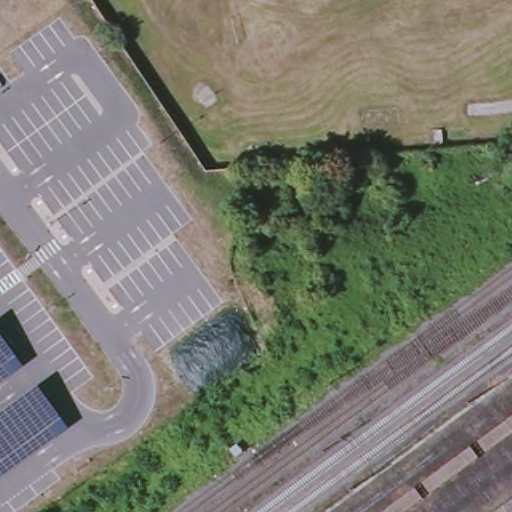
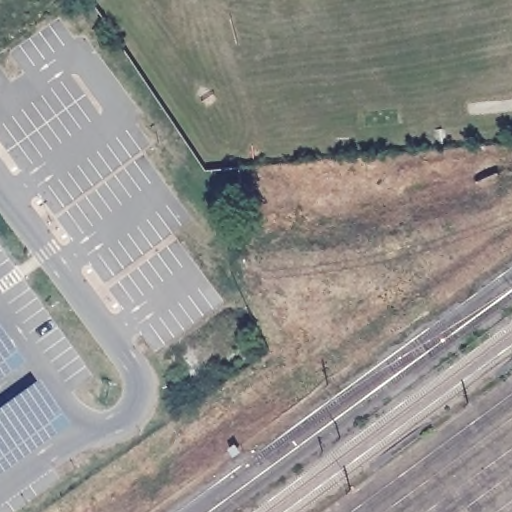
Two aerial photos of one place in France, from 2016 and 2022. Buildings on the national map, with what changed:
[]

